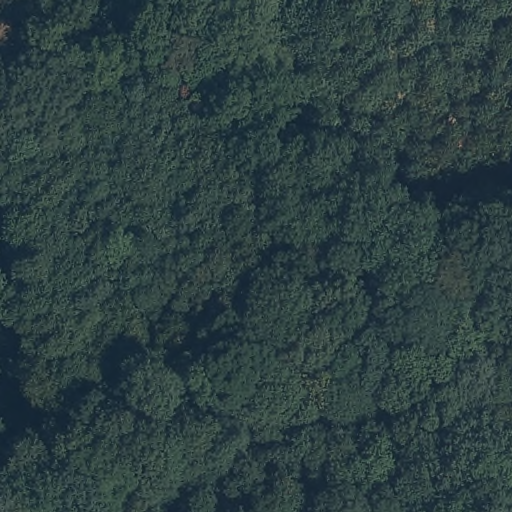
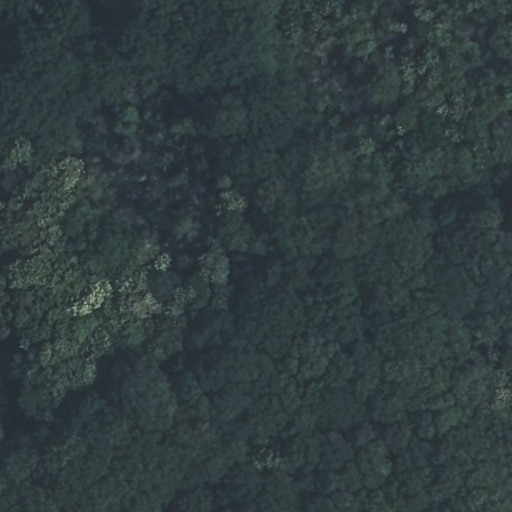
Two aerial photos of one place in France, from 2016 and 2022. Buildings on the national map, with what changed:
[]

